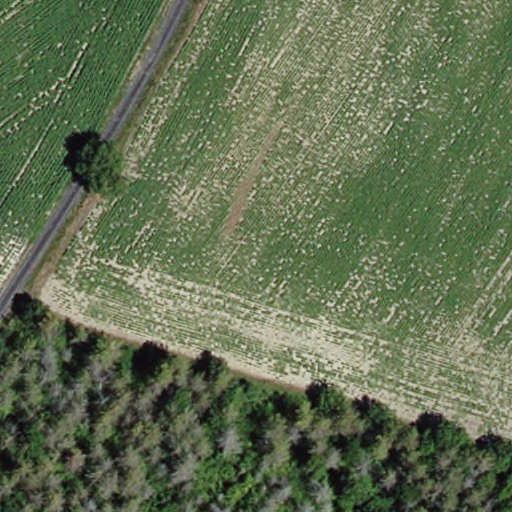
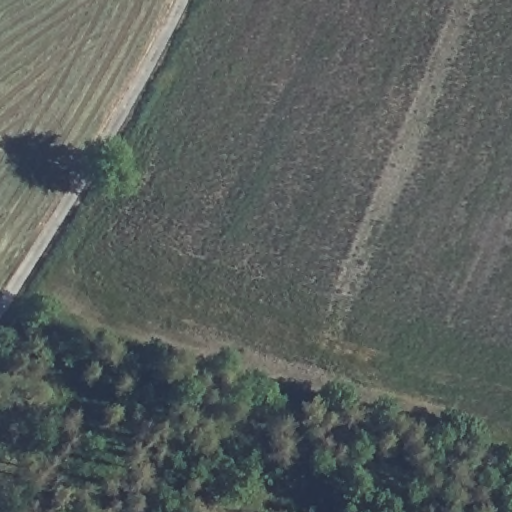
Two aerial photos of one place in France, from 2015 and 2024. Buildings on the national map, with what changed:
[]

